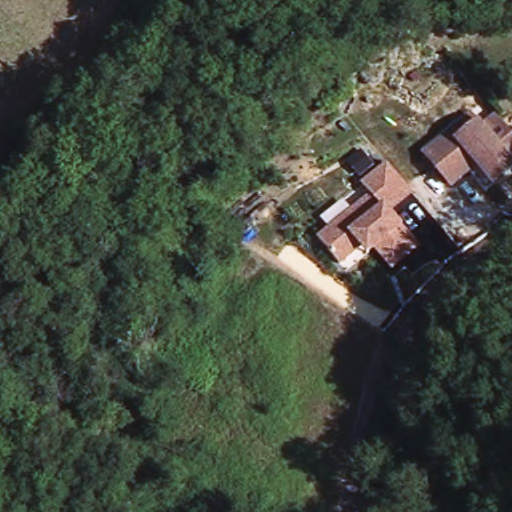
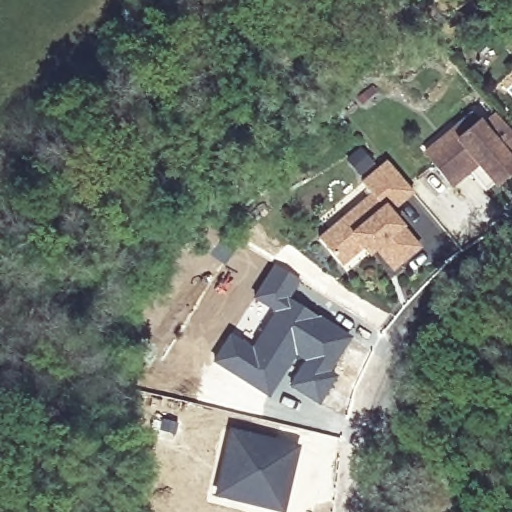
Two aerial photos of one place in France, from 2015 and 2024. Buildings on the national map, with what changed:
unchanged [(478,164),(452,185),(426,154),(455,129),(472,115),(478,123),(482,127),(497,115),(500,119),(512,132),(512,170),(505,175),(495,184),(488,176),(478,164)]
unchanged [(362,182),(388,161),(416,193),(391,211),(402,225),(421,248),(393,272),(377,250),(370,256),(362,247),(342,264),(318,237),(371,194),(362,182)]
new [(231,330),(250,342),(270,309),(253,297),(274,263),(300,278),(290,297),(352,336),(330,370),(337,374),(318,405),(286,386),(302,360),(295,355),(268,397),(211,361),(231,330)]
new [(257,432),(300,438),(283,512),(275,512),(210,496),(227,424),(257,432)]

